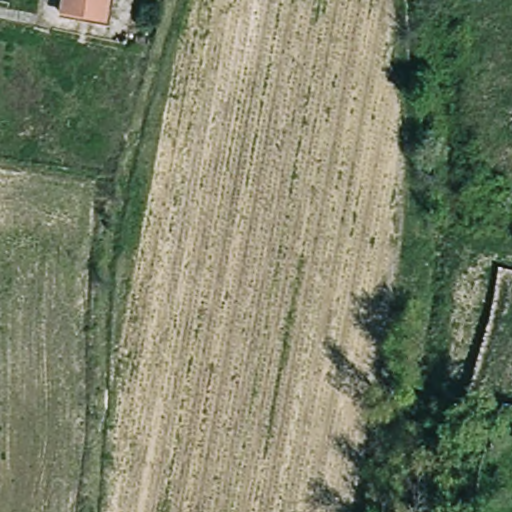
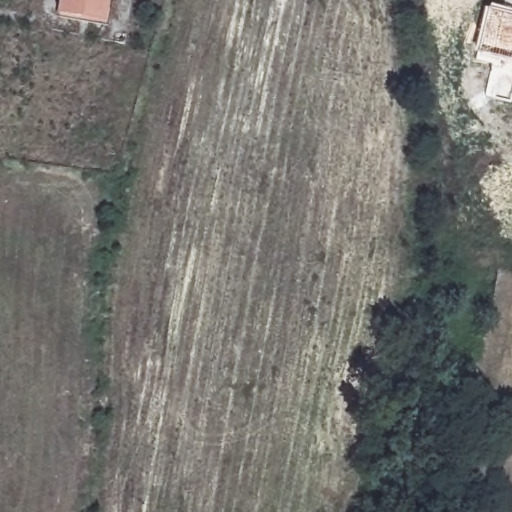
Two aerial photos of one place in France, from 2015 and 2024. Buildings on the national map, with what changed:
unchanged [(81,5),(80,16),(59,12),(61,0),(105,0),(104,9),(81,5)]
new [(484,7),(491,7),(491,5),(512,9),(512,62),(475,55),(484,7)]

